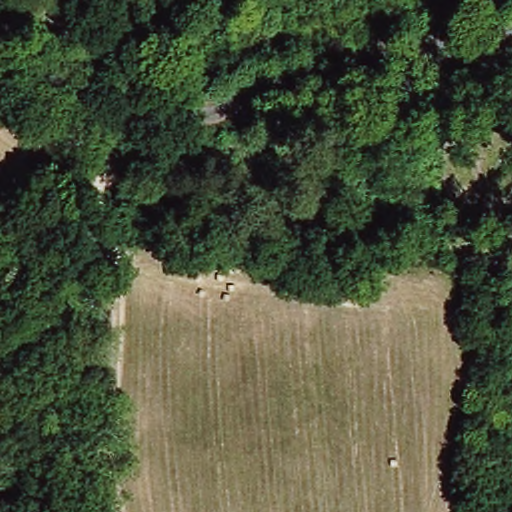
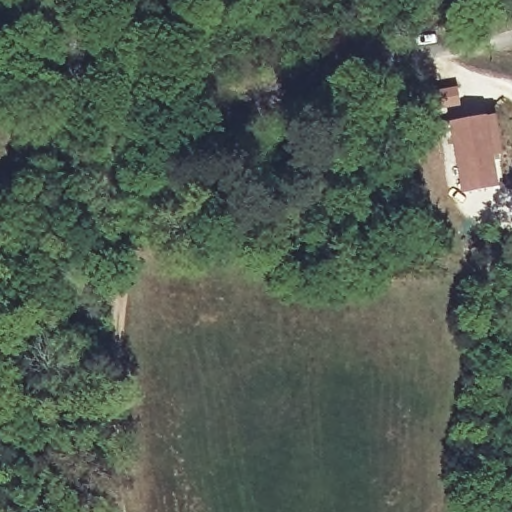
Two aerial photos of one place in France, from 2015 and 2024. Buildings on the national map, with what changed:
new [(500,155),(491,157),(497,187),(462,195),(447,124),(494,115),(500,155)]

